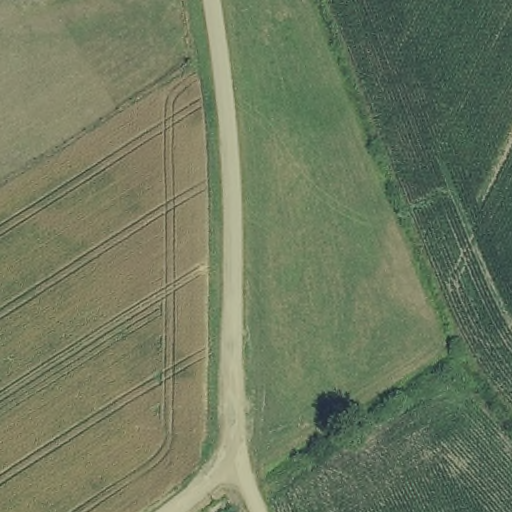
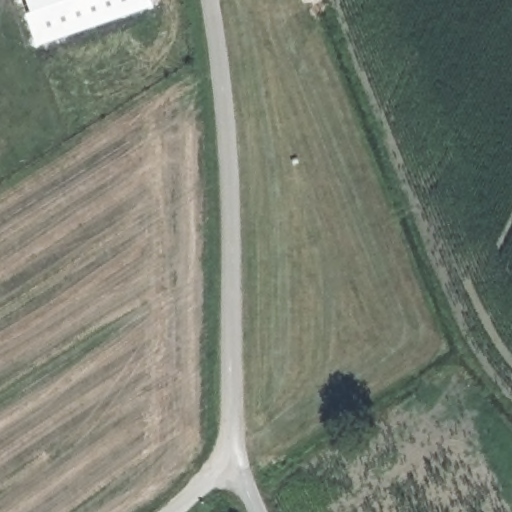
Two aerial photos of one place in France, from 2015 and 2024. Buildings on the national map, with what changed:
new [(152,4),(35,44),(24,10),(27,8),(24,0),(150,0),(152,4)]

